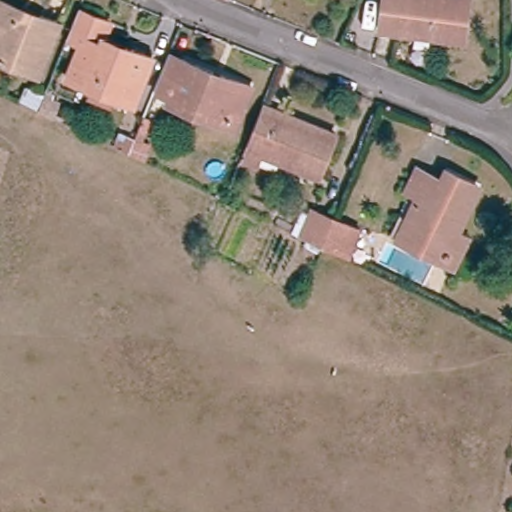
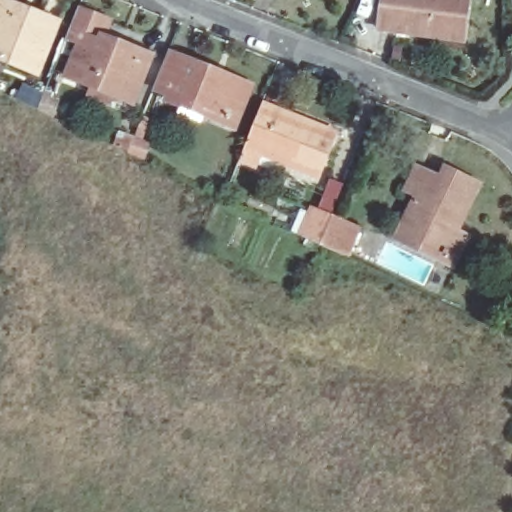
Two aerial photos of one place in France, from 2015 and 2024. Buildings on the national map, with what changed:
unchanged [(0,57),(0,0),(8,0),(34,11),(58,21),(37,71),(0,57)]
unchanged [(379,28),(382,0),(469,0),(464,39),(379,28)]
unchanged [(115,94),(112,100),(94,94),(96,88),(67,76),(81,40),(67,34),(78,6),(111,19),(105,36),(125,43),(153,54),(136,97),(134,101),(115,94)]
unchanged [(236,126),(224,121),(169,100),(171,95),(155,88),(170,51),(241,79),(252,84),(236,126)]
unchanged [(43,96),(56,101),(51,114),(38,107),(43,96)]
unchanged [(263,102),(337,131),(319,176),(262,153),(257,166),(241,159),(263,102)]
unchanged [(120,134),(134,139),(129,151),(116,145),(120,134)]
unchanged [(437,257),(407,241),(398,237),(406,220),(419,193),(408,188),(419,166),(441,177),(446,168),(462,176),(479,184),(477,188),(456,231),(467,236),(458,257),(453,265),(437,257)]
unchanged [(349,257),(321,243),(299,233),(311,207),(332,215),(361,227),(349,257)]

